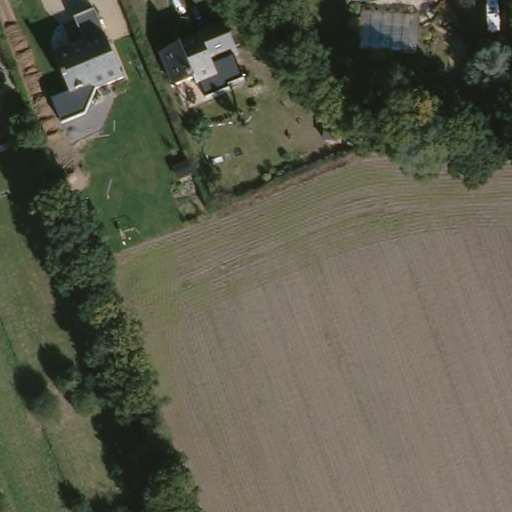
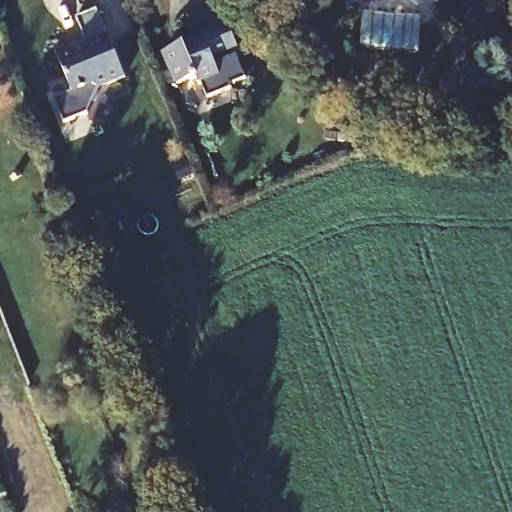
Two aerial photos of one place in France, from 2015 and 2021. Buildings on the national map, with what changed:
unchanged [(72,44),(79,47),(87,43),(75,16),(96,7),(125,75),(98,86),(91,83),(73,91),(56,51),(72,44)]
unchanged [(209,83),(205,75),(187,82),(175,50),(212,36),(212,29),(236,20),(249,54),(225,64),(230,75),(209,83)]
unchanged [(3,29),(0,30),(0,21),(3,29)]
unchanged [(86,114),(60,124),(53,100),(73,91),(91,83),(93,84),(98,86),(86,114)]

